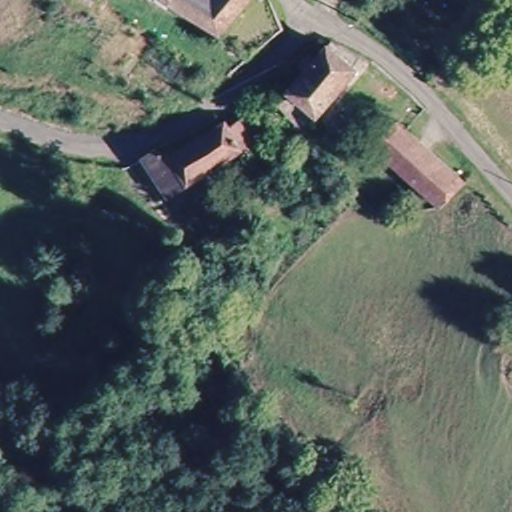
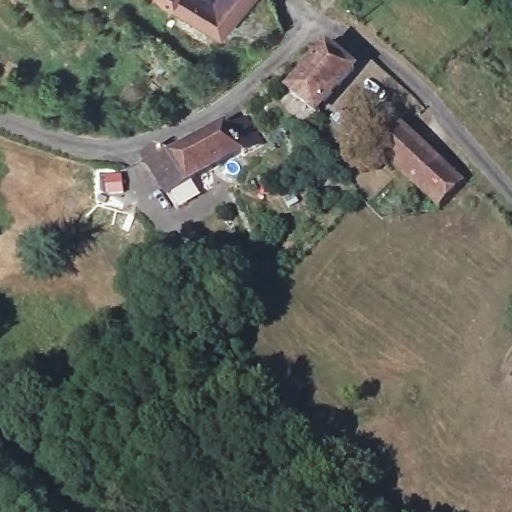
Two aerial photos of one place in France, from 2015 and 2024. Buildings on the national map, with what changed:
unchanged [(213,35),(161,0),(208,0),(210,2),(211,0),(242,0),(213,35)]
unchanged [(312,121),(282,94),(327,41),(363,61),(312,121)]
unchanged [(159,144),(169,154),(227,121),(229,125),(250,114),(261,145),(240,153),(238,150),(163,192),(142,154),(159,144)]
unchanged [(346,137),(334,124),(342,116),(354,126),(346,137)]
unchanged [(377,149),(402,125),(462,184),(436,210),(377,149)]

